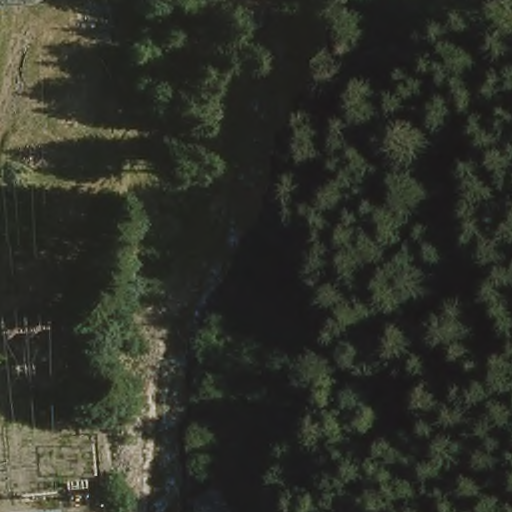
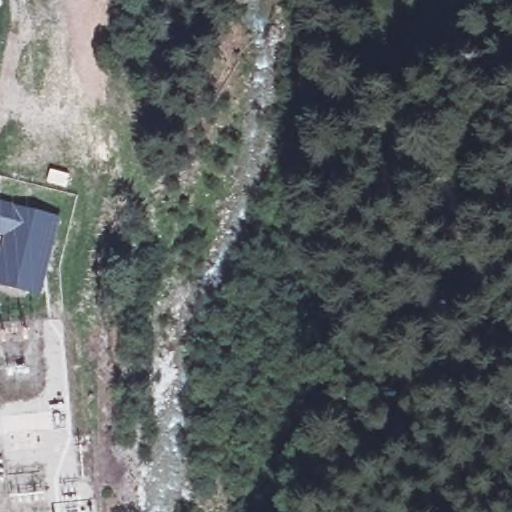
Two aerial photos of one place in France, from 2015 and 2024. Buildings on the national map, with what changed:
new [(32,290),(0,281),(0,250),(5,231),(0,230),(0,205),(52,218),(32,290)]

